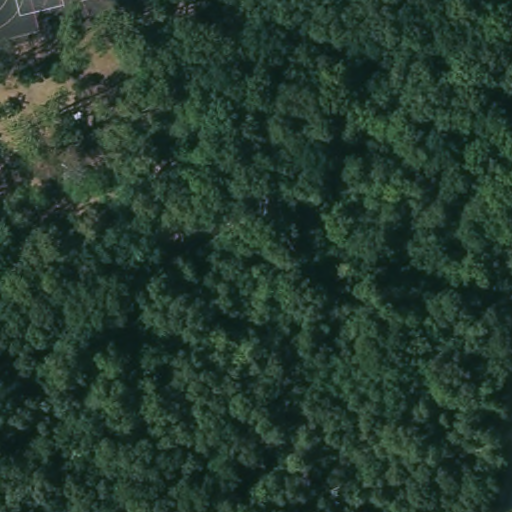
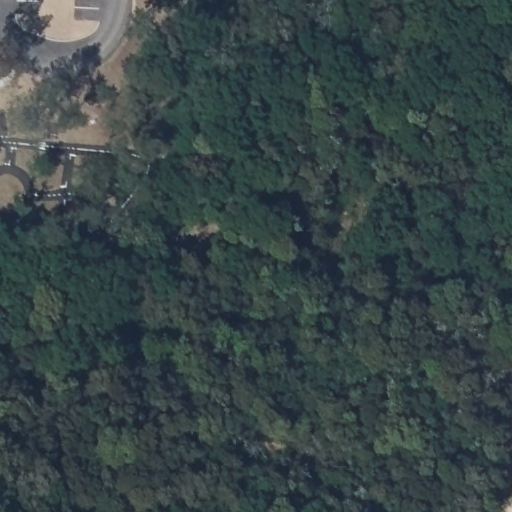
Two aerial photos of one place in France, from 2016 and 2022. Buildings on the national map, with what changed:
unchanged [(74,169),(77,198),(61,201),(57,172),(74,169)]

